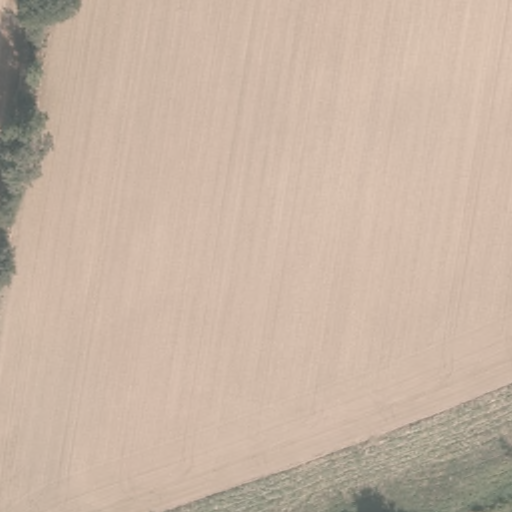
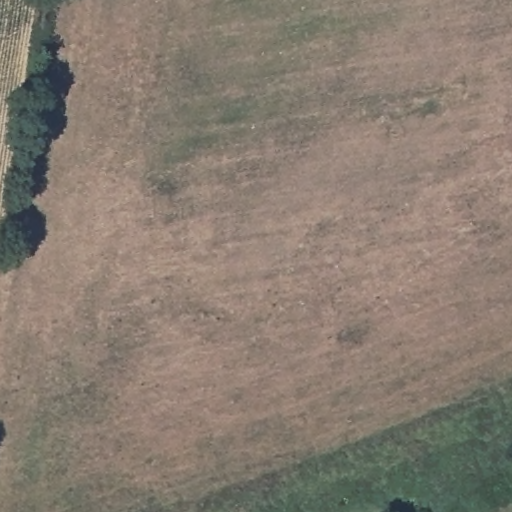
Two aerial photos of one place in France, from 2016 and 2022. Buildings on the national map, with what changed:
[]

